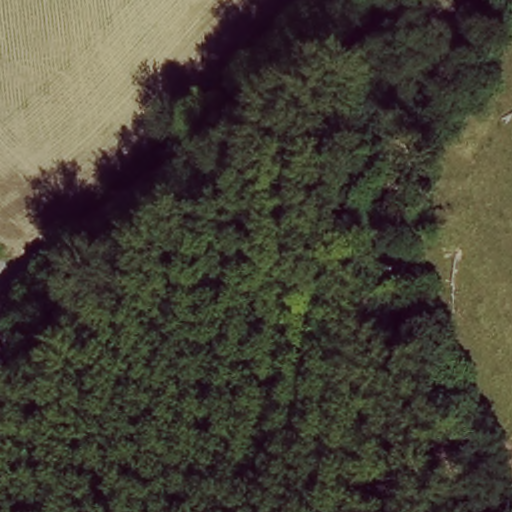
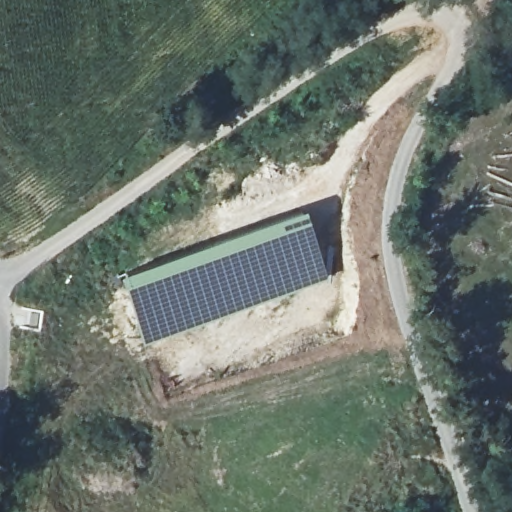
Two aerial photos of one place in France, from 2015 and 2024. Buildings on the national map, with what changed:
new [(308,209),(332,282),(239,313),(143,342),(120,270),(308,209)]
new [(16,306),(43,308),(41,330),(14,327),(16,306)]

